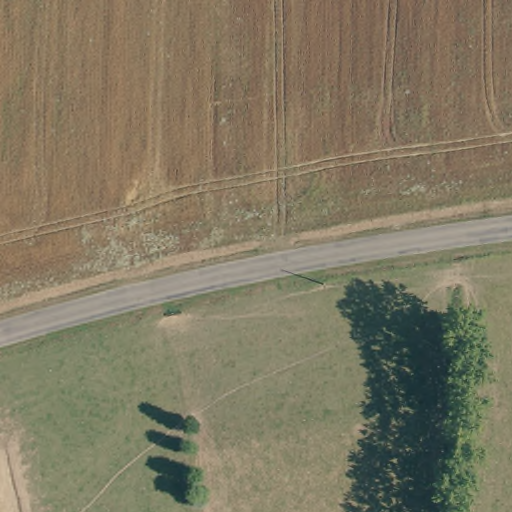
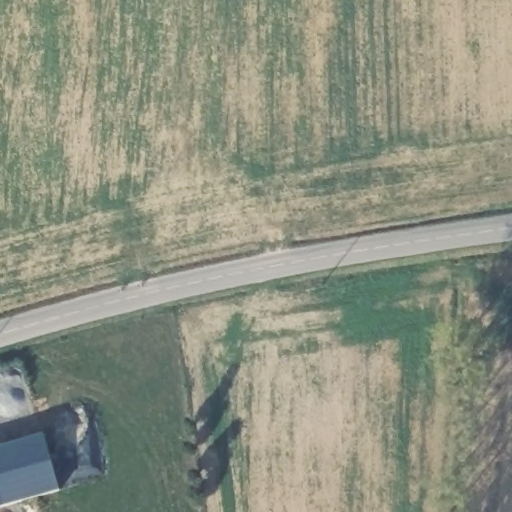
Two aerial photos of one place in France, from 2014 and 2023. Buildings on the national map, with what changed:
new [(60,491),(0,508),(0,447),(44,435),(60,491)]

